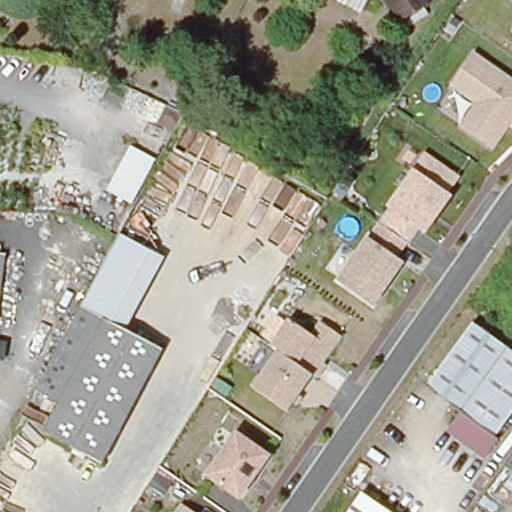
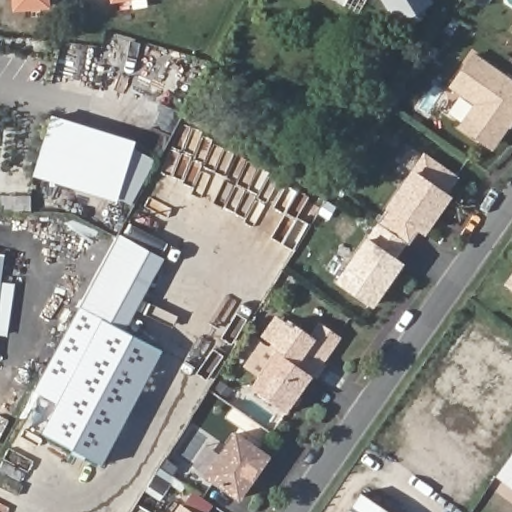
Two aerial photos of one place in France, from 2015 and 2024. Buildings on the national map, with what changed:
new [(18,16),(17,0),(56,0),(57,12),(18,16)]
new [(110,0),(126,0),(110,3),(110,0)]
new [(116,6),(115,0),(156,0),(156,1),(116,6)]
unchanged [(390,0),(424,0),(400,16),(390,0)]
unchanged [(512,80),(512,125),(494,151),(461,127),(474,105),(451,88),(474,53),(512,80)]
new [(138,146),(158,161),(135,207),(116,205),(35,179),(54,119),(138,146)]
demolished [(132,205),(106,191),(132,145),(156,159),(132,205)]
unchanged [(405,242),(399,237),(380,224),(378,223),(424,156),(455,178),(444,195),(448,198),(436,215),(424,231),(420,229),(420,228),(409,245),(405,242)]
unchanged [(373,305),(338,281),(367,239),(369,240),(380,224),(399,237),(405,242),(393,258),(402,264),(389,282),(385,287),(373,305)]
unchanged [(35,392),(118,234),(165,257),(122,333),(99,322),(57,404),(35,392)]
new [(512,281),(512,291),(507,288),(512,281)]
unchanged [(277,351),(270,345),(288,320),(311,334),(319,322),(342,339),(312,376),(277,351)]
unchanged [(122,333),(158,351),(100,463),(42,432),(57,404),(99,322),(122,333)]
demolished [(430,380),(473,323),(512,350),(512,406),(497,427),(430,380)]
unchanged [(286,413),(251,388),(277,351),(312,376),(286,413)]
demolished [(465,408),(500,433),(490,447),(454,422),(465,408)]
unchanged [(238,500),(203,479),(236,430),(272,455),(238,500)]
new [(512,462),(512,488),(500,479),(512,462)]
unchanged [(393,512),(343,512),(358,489),(393,512)]
unchanged [(187,512),(179,512),(181,508),(187,512)]

